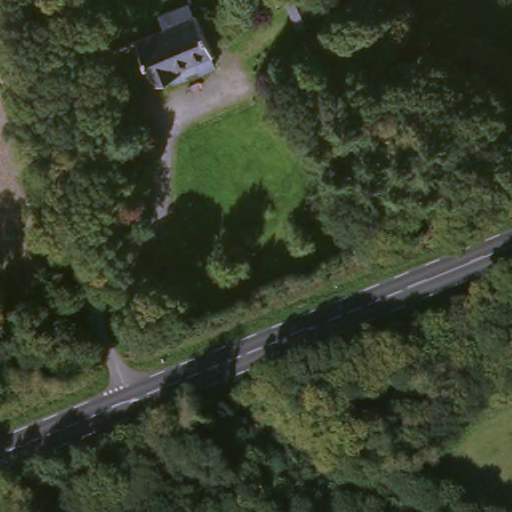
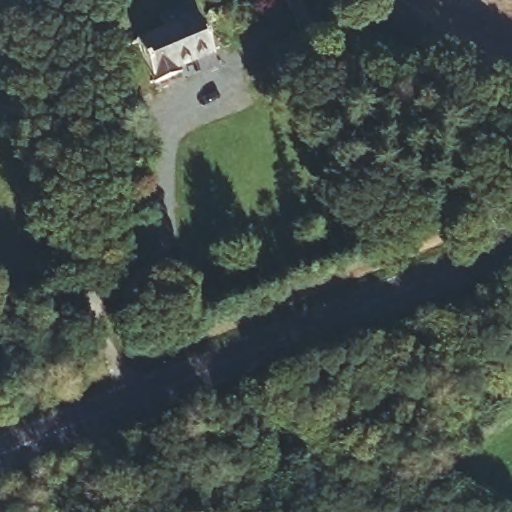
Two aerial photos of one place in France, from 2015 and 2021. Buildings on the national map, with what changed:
unchanged [(297,33),(280,0),(312,0),(322,22),(297,33)]
unchanged [(169,40),(167,25),(196,15),(200,28),(217,77),(199,85),(192,70),(175,77),(177,82),(148,89),(136,49),(169,40)]

